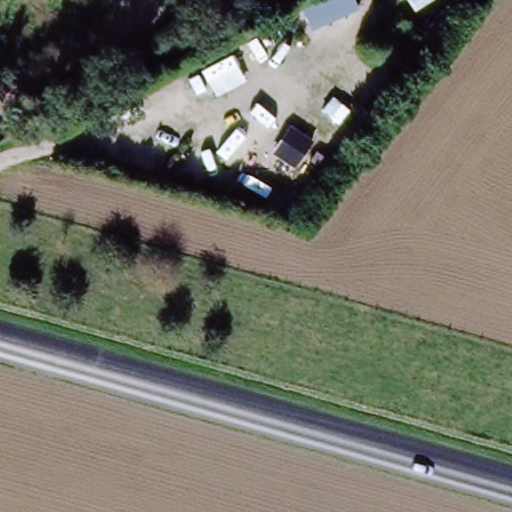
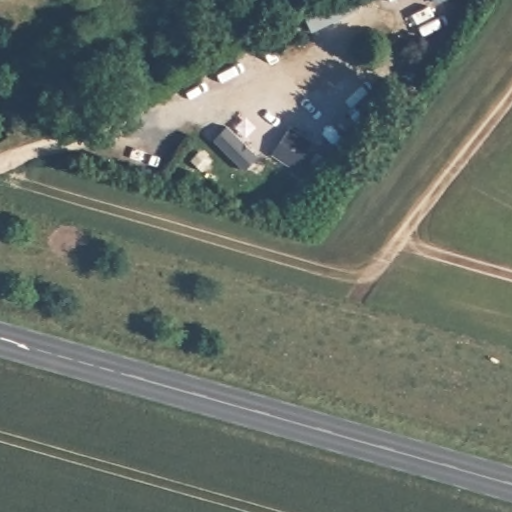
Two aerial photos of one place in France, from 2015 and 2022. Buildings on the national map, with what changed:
unchanged [(310,1),(312,0),(352,0),(350,1),(353,9),(322,24),(318,16),(310,1)]

